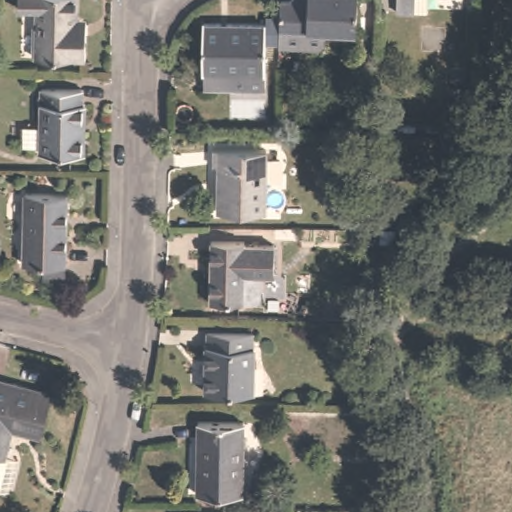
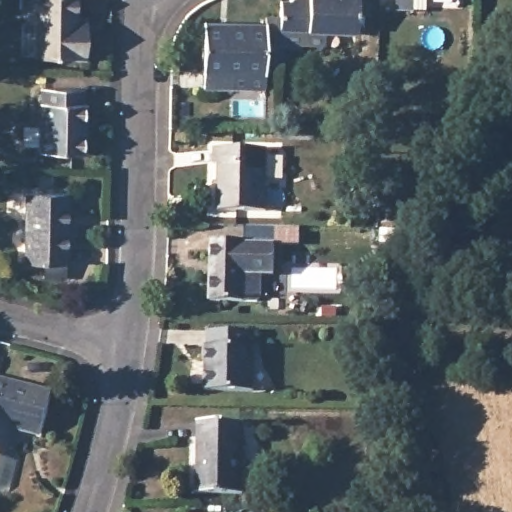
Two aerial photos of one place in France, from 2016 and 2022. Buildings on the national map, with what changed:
unchanged [(80,36),(79,58),(29,58),(30,9),(14,9),(14,0),(70,0),(70,18),(80,18),(80,36)]
unchanged [(355,34),(322,32),(322,43),(317,48),(277,46),(278,23),(279,0),(288,0),(289,0),(357,0),(355,34)]
unchanged [(418,13),(400,13),(401,0),(431,0),(430,13),(418,13)]
unchanged [(231,88),(204,87),(204,71),(202,71),(203,23),(264,25),(263,73),(262,89),(231,88)]
unchanged [(40,88),(81,89),(81,104),(84,104),(83,153),(39,152),(40,88)]
unchanged [(213,148),(264,149),(264,211),(217,211),(217,165),(213,165),(213,148)]
unchanged [(24,193),(65,193),(65,264),(23,264),(24,193)]
unchanged [(254,302),(242,302),(210,301),(211,241),(243,242),(243,244),(274,245),(273,275),(261,275),(261,295),(254,302)]
unchanged [(204,345),(206,345),(206,331),(252,332),(252,347),(254,347),(254,392),(203,391),(204,345)]
unchanged [(51,395),(40,434),(10,426),(1,457),(18,462),(9,493),(0,490),(0,382),(51,395)]
unchanged [(198,422),(242,423),(241,495),(196,494),(198,422)]
unchanged [(379,434),(379,457),(365,457),(365,434),(379,434)]

